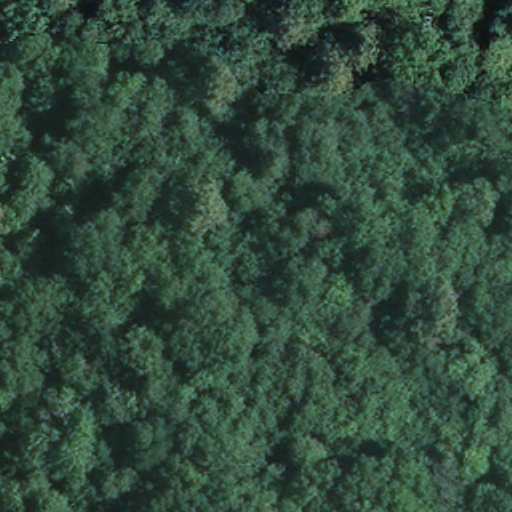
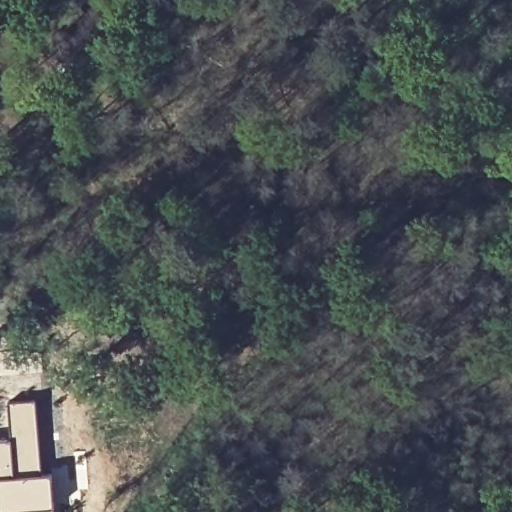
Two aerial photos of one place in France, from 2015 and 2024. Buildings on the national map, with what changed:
new [(12,437),(9,400),(37,398),(43,472),(53,472),(57,512),(1,512),(0,506),(0,438),(12,437)]

